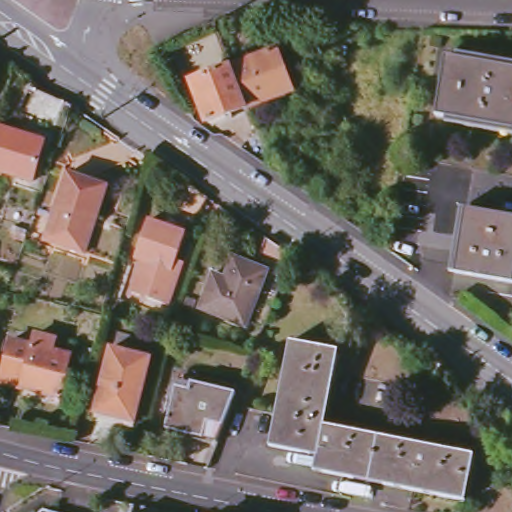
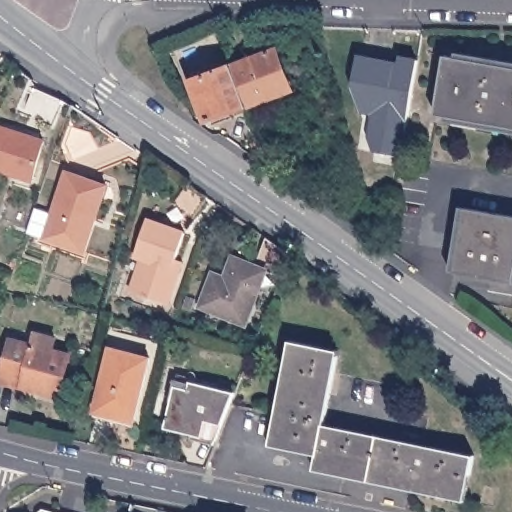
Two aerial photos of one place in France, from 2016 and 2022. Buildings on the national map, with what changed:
unchanged [(276,49),(292,94),(247,110),(230,65),(276,49)]
new [(354,58),(395,65),(396,59),(414,62),(396,160),(381,158),(383,142),(367,140),(371,117),(358,115),(349,89),(354,58)]
unchanged [(436,117),(446,58),(512,69),(512,129),(436,117)]
unchanged [(247,110),(207,125),(206,125),(189,81),(230,65),(247,110)]
unchanged [(64,105),(54,130),(15,114),(25,87),(64,105)]
unchanged [(31,179),(0,169),(0,128),(43,141),(31,179)]
unchanged [(108,185),(86,251),(46,238),(69,171),(108,185)]
unchanged [(205,195),(186,225),(162,219),(184,180),(205,195)]
unchanged [(453,275),(465,210),(512,219),(512,285),(453,275)]
unchanged [(184,231),(173,267),(180,270),(168,302),(131,290),(142,257),(134,255),(146,220),(184,231)]
unchanged [(286,254),(276,279),(261,272),(240,327),(195,311),(207,277),(218,281),(226,260),(248,267),(257,239),(286,254)]
unchanged [(339,345),(324,420),(475,459),(470,506),(315,465),(316,450),(270,441),(291,336),(339,345)]
unchanged [(70,356),(60,398),(1,383),(11,341),(70,356)]
unchanged [(149,358),(135,423),(97,415),(112,350),(149,358)]
unchanged [(237,392),(219,439),(218,440),(167,428),(176,387),(191,391),(192,383),(237,392)]
unchanged [(157,512),(130,512),(132,505),(158,510),(157,512)]
unchanged [(53,512),(44,512),(47,510),(53,512)]

